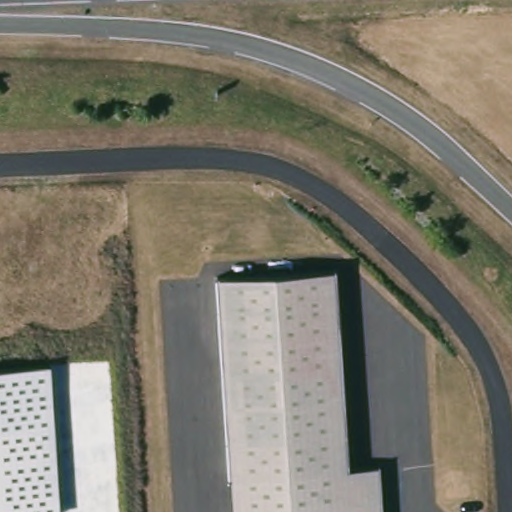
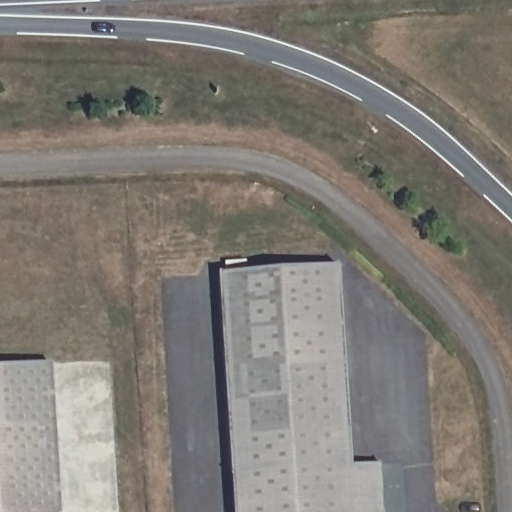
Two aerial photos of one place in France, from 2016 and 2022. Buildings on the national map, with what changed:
unchanged [(218,275),(335,268),(348,468),(379,465),(382,512),(234,512),(218,275)]
unchanged [(0,368),(51,366),(61,512),(0,512),(0,368)]

